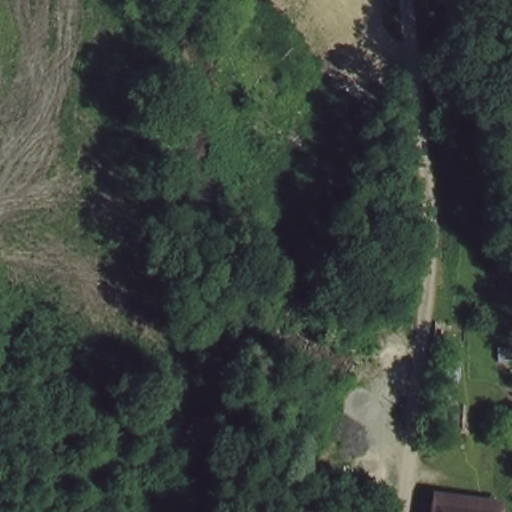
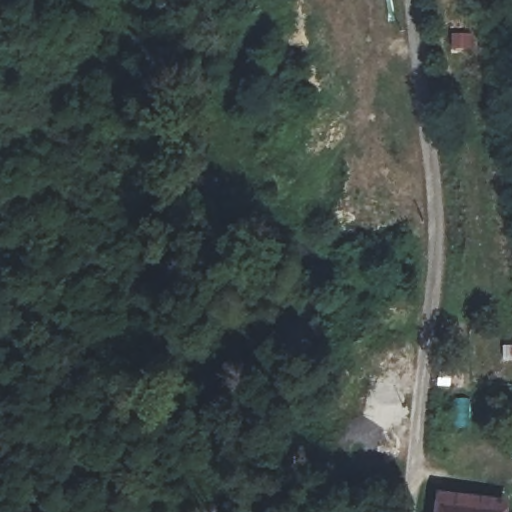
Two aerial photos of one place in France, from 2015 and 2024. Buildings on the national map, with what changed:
unchanged [(505,505),(503,512),(436,512),(439,493),(505,505)]

